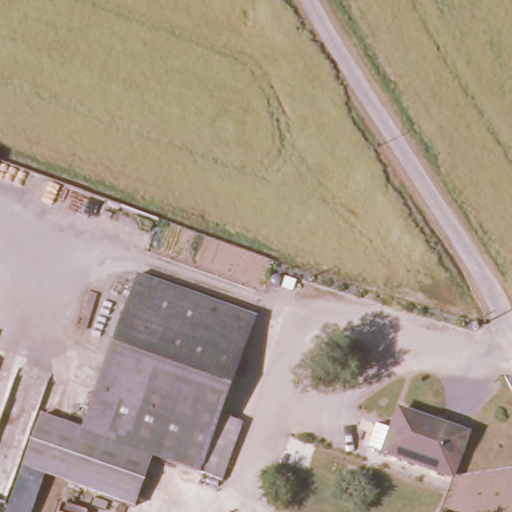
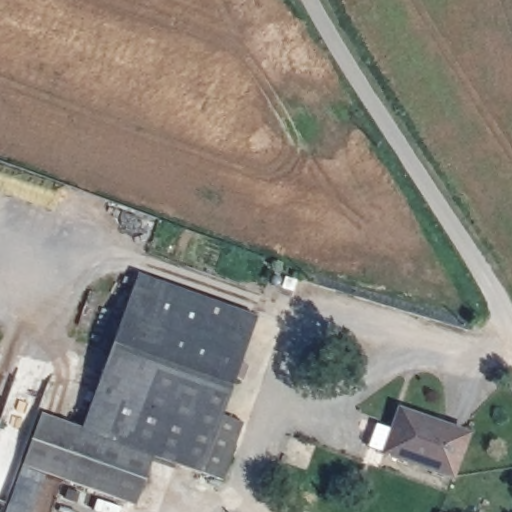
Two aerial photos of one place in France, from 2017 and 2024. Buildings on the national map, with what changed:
unchanged [(256,318),(217,416),(196,468),(162,456),(149,451),(80,425),(73,423),(133,270),(256,318)]
unchanged [(73,423),(80,425),(149,451),(133,507),(20,469),(40,407),(73,423)]
unchanged [(238,424),(218,476),(196,468),(217,416),(238,424)]
unchanged [(391,419),(459,445),(446,483),(378,456),(391,419)]

